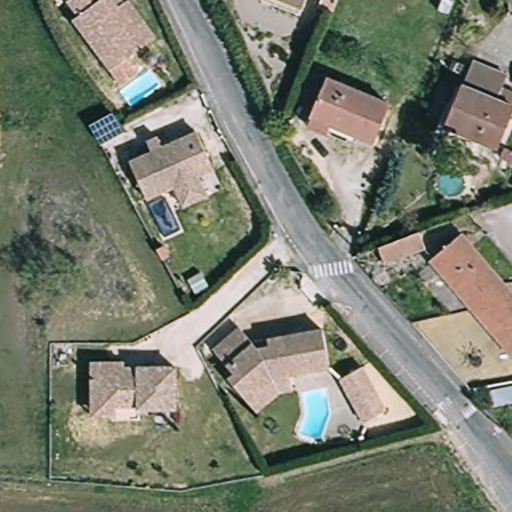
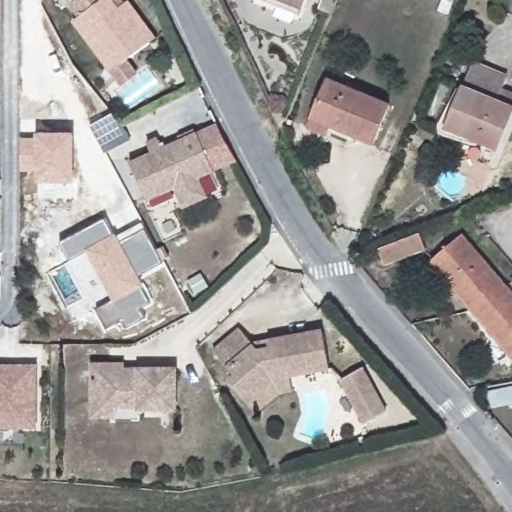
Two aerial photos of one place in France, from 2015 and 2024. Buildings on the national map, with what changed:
unchanged [(154,38),(110,71),(72,21),(78,16),(67,2),(70,0),(120,0),(123,4),(127,1),(154,38)]
unchanged [(302,8),(281,0),(305,0),(302,8)]
unchanged [(477,60),(512,74),(506,88),(512,91),(512,123),(501,149),(449,128),(477,60)]
unchanged [(307,127),(310,118),(326,79),(388,105),(372,144),(329,126),(326,135),(307,127)]
unchanged [(122,126),(124,129),(99,143),(90,125),(112,114),(122,126)]
new [(73,133),(75,183),(37,183),(37,172),(21,171),(21,138),(37,139),(37,133),(73,133)]
unchanged [(191,138),(208,176),(141,205),(124,167),(191,138)]
new [(164,262),(139,275),(145,286),(143,287),(152,302),(139,309),(145,319),(127,328),(121,319),(109,326),(99,308),(114,302),(87,252),(70,261),(60,243),(105,219),(113,235),(116,233),(118,236),(142,223),(164,262)]
unchanged [(384,264),(378,248),(419,232),(424,248),(384,264)]
unchanged [(512,295),(512,357),(511,358),(430,262),(462,235),(512,295)]
unchanged [(246,401),(228,380),(233,375),(212,351),(239,328),(252,343),(322,330),(329,368),(289,376),(292,391),(279,393),(256,413),(246,401)]
unchanged [(11,363),(34,363),(34,426),(0,426),(0,363),(11,363)]
unchanged [(91,417),(91,400),(91,363),(123,363),(123,368),(175,368),(175,410),(137,410),(137,407),(115,407),(115,417),(91,417)]
unchanged [(362,367),(389,410),(367,423),(341,380),(362,367)]
unchanged [(487,392),(512,387),(512,404),(491,408),(487,392)]

